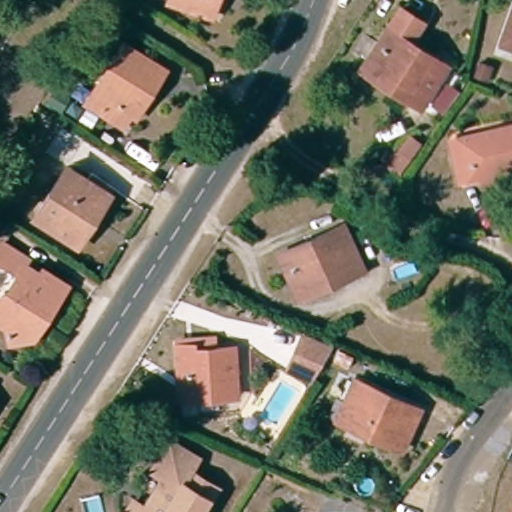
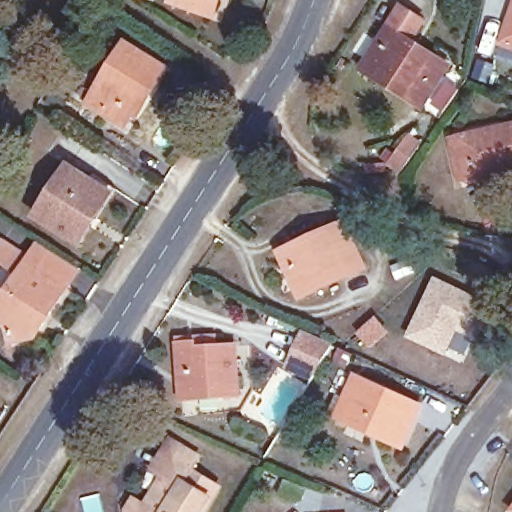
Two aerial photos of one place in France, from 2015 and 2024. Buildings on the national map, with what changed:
unchanged [(166,2),(166,0),(213,0),(212,2),(205,19),(166,2)]
unchanged [(360,70),(400,10),(421,24),(407,44),(432,60),(446,70),(440,77),(419,109),(405,99),(376,80),(360,70)]
unchanged [(512,45),(501,40),(512,13),(512,45)]
unchanged [(87,105),(94,95),(123,48),(165,75),(155,91),(136,121),(130,117),(124,127),(87,105)]
unchanged [(481,176),(463,180),(454,141),(512,127),(512,168),(508,169),(510,176),(482,184),(481,176)]
unchanged [(403,174),(391,165),(411,136),(423,145),(403,174)]
unchanged [(98,230),(93,227),(82,245),(39,219),(70,169),(107,190),(119,196),(98,230)]
unchanged [(302,291),(282,245),(329,225),(347,216),(353,230),(366,261),(352,268),(320,283),(302,291)]
unchanged [(7,344),(5,325),(0,322),(0,292),(2,290),(6,291),(17,270),(0,260),(0,245),(4,240),(29,255),(43,264),(64,276),(71,281),(61,297),(51,313),(44,324),(36,336),(7,344)]
new [(406,338),(435,276),(492,304),(476,342),(457,331),(446,355),(406,338)]
unchanged [(296,353),(308,333),(333,345),(335,345),(321,368),(314,380),(313,381),(288,366),(296,353)]
unchanged [(185,392),(183,347),(183,342),(220,341),(220,350),(240,349),(242,396),(220,397),(185,400),(185,392)]
unchanged [(376,431),(350,420),(340,415),(348,396),(357,377),(421,406),(407,435),(403,445),(376,431)]
unchanged [(157,480),(175,450),(200,466),(194,479),(217,494),(205,512),(148,512),(165,486),(157,480)]
unchanged [(146,512),(136,512),(140,507),(146,512)]

